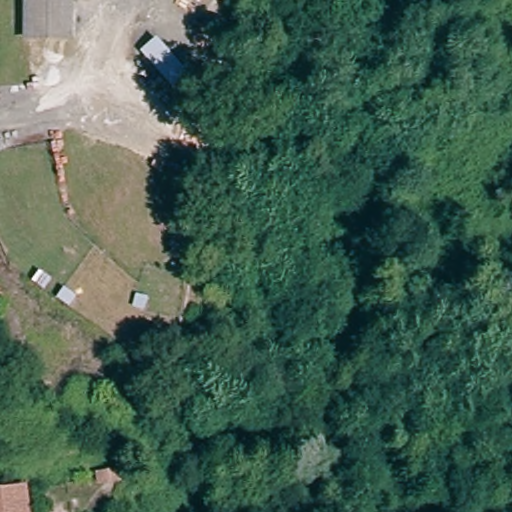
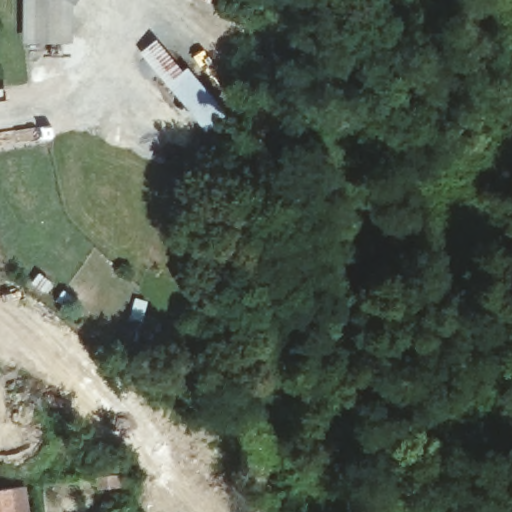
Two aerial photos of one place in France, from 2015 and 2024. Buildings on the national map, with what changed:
unchanged [(76,0),(76,4),(72,0),(76,0)]
unchanged [(177,63),(165,75),(141,48),(154,36),(177,63)]
unchanged [(222,104),(205,120),(168,79),(185,63),(222,104)]
unchanged [(112,471),(114,482),(95,486),(94,474),(112,471)]
unchanged [(0,489),(7,488),(16,487),(22,486),(26,512),(0,512),(0,489)]

